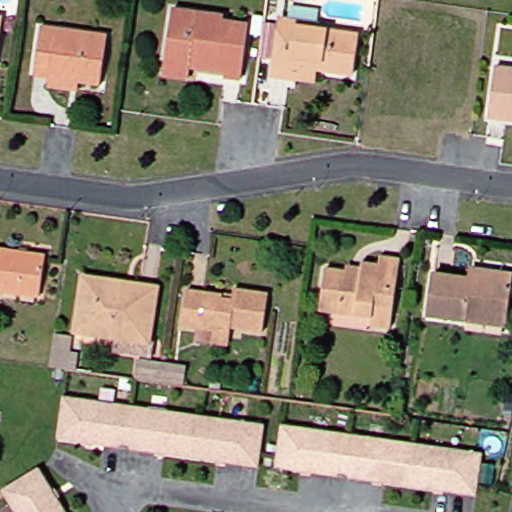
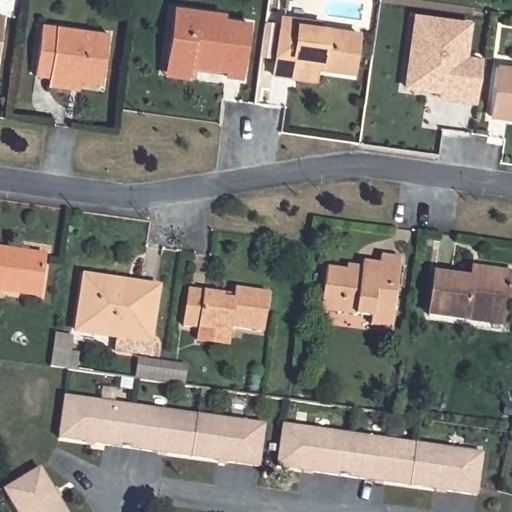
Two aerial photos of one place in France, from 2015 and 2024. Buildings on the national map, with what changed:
unchanged [(165,79),(167,66),(174,12),(183,13),(183,19),(251,29),(243,81),(227,79),(227,75),(191,70),(189,82),(165,79)]
new [(468,57),(483,59),(476,105),(438,100),(439,95),(403,90),(414,15),(471,22),(470,29),(468,57)]
unchanged [(8,18),(1,70),(0,70),(0,17),(8,18)]
unchanged [(293,81),(276,78),(285,24),(362,35),(354,77),(320,72),(318,84),(293,81)]
unchanged [(53,90),(54,81),(38,79),(45,32),(110,41),(103,88),(83,85),(82,94),(53,90)]
unchanged [(501,64),(512,65),(512,120),(494,117),(501,64)]
unchanged [(52,259),(46,298),(0,291),(0,250),(52,259)]
unchanged [(329,291),(332,270),(352,272),(353,269),(366,270),(367,264),(385,266),(386,259),(406,261),(396,331),(376,328),(377,319),(345,314),(326,311),(329,291)]
unchanged [(429,318),(435,276),(472,281),(474,271),(512,276),(512,287),(507,321),(506,329),(467,323),(429,318)]
unchanged [(146,287),(163,290),(156,343),(156,345),(118,339),(83,333),(91,280),(109,282),(146,287)]
unchanged [(219,346),(221,333),(190,328),(196,291),(228,296),(240,297),(241,291),(272,296),(267,334),(238,330),(237,335),(235,349),(219,346)]
new [(55,336),(73,338),(71,355),(77,356),(76,370),(50,366),(55,336)]
unchanged [(156,345),(154,361),(191,365),(189,385),(137,380),(139,357),(116,354),(118,339),(156,345)]
unchanged [(133,406),(199,416),(266,426),(260,467),(193,458),(60,438),(66,397),(133,406)]
unchanged [(419,447),(485,456),(479,498),(413,488),(278,469),(284,427),(351,437),(419,447)]
unchanged [(23,512),(10,490),(46,468),(73,512),(23,512)]

